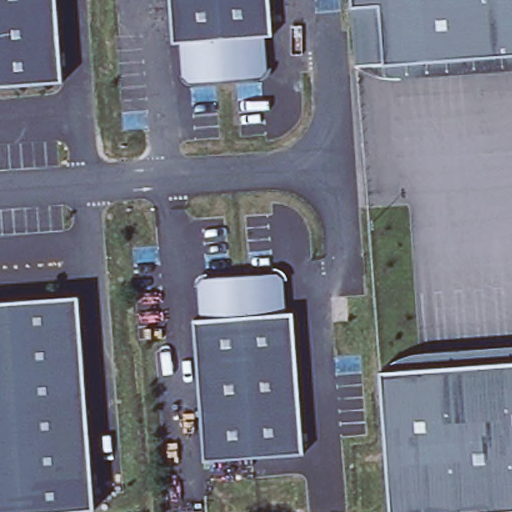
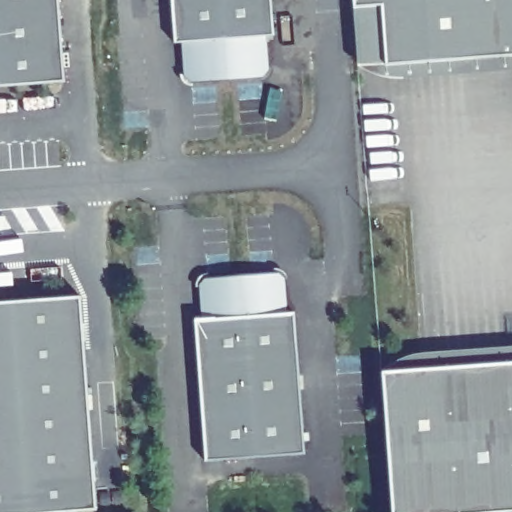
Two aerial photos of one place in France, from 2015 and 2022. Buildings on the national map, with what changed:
unchanged [(0,85),(0,0),(57,0),(62,81),(0,85)]
unchanged [(175,41),(172,0),(269,0),(272,32),(266,34),(267,68),(264,76),(190,81),(183,74),(182,40),(175,41)]
unchanged [(353,0),(512,0),(512,69),(402,77),(390,77),(385,76),(375,73),(356,66),(353,6),(353,0)]
unchanged [(194,319),(200,319),(198,285),(204,277),(278,273),(285,277),(287,313),(293,312),(303,453),(205,462),(194,319)]
unchanged [(95,508),(40,512),(0,512),(0,301),(80,296),(95,508)]
unchanged [(381,370),(387,365),(392,362),(397,359),(409,355),(512,346),(512,510),(488,512),(391,512),(381,370)]

